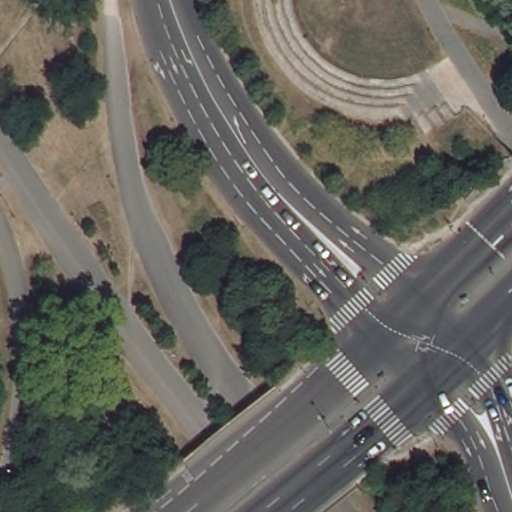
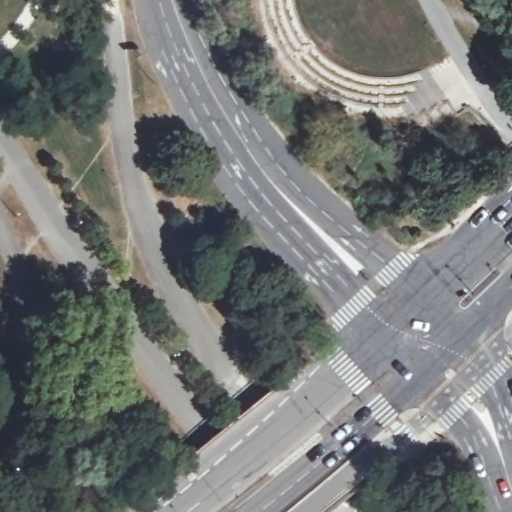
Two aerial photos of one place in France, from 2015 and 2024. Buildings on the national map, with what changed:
[]

